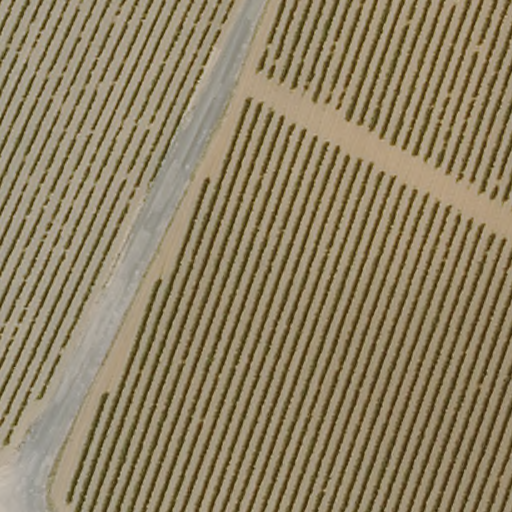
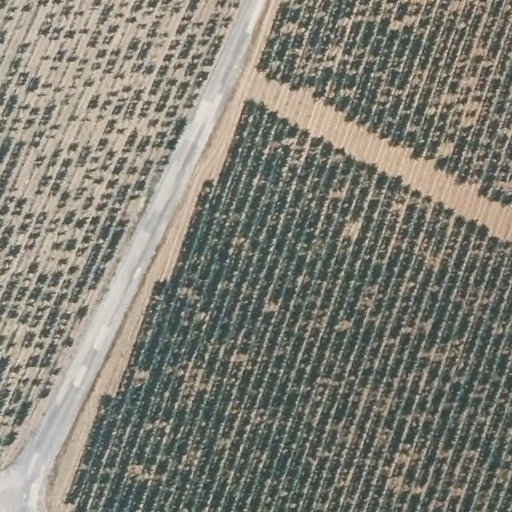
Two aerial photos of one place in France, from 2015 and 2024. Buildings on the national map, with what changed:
[]

